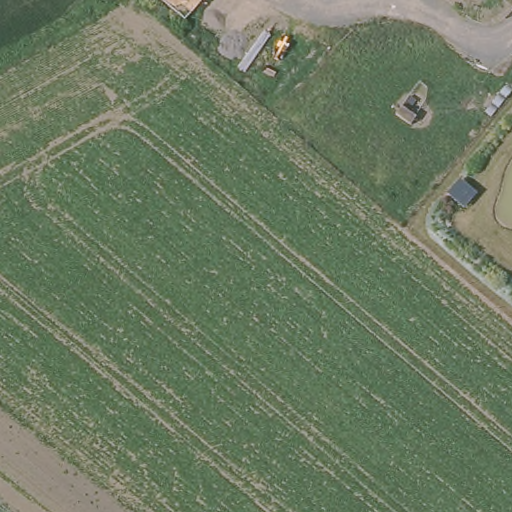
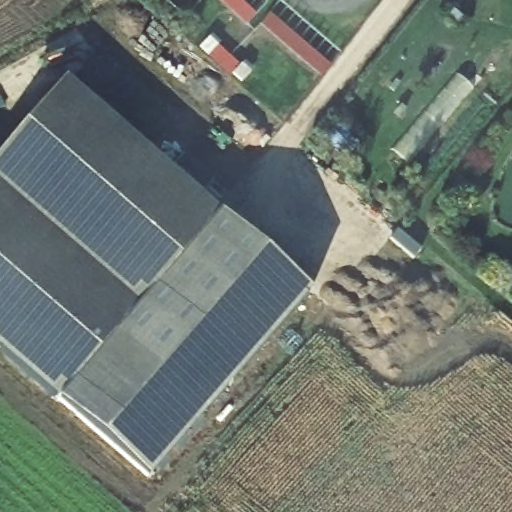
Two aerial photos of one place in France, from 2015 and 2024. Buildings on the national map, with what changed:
new [(64,84),(313,293),(154,482),(0,353),(0,160),(64,84)]

